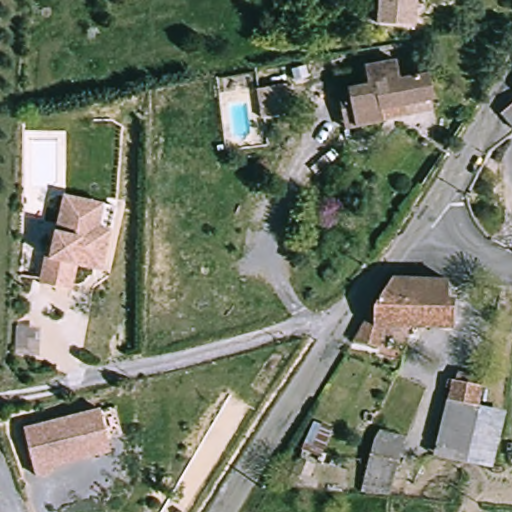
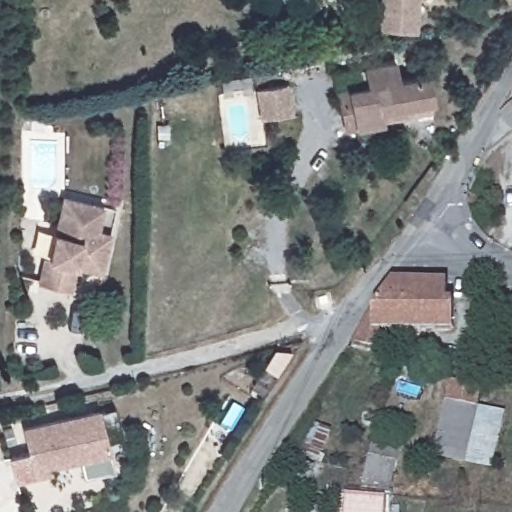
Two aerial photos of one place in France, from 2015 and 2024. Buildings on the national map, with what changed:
unchanged [(417,0),(415,25),(382,24),(383,0),(417,0)]
unchanged [(384,125),(349,132),(341,90),(371,84),(369,74),(403,66),(405,80),(428,75),(434,105),(431,105),(433,115),(384,125)]
unchanged [(262,108),(259,92),(292,87),(297,117),(274,121),(264,122),(262,108)]
unchanged [(502,115),(512,107),(512,128),(502,115)]
unchanged [(101,200),(96,225),(109,227),(105,248),(101,267),(75,261),(70,287),(39,281),(44,255),(49,255),(62,192),(92,199),(101,200)]
unchanged [(442,301),(450,301),(449,331),(385,328),(384,342),(348,340),(384,282),(442,285),(442,301)]
unchanged [(449,401),(450,377),(466,378),(482,379),(482,380),(481,395),(480,403),(507,408),(492,470),(443,461),(447,432),(448,415),(449,401)]
unchanged [(111,447),(52,466),(54,472),(37,477),(22,430),(98,406),(111,447)]
unchanged [(390,490),(362,485),(372,428),(400,433),(390,490)]
new [(348,496),(388,500),(387,512),(346,512),(348,496)]

